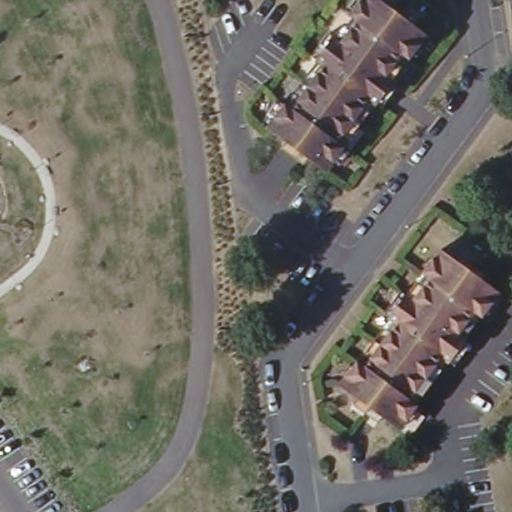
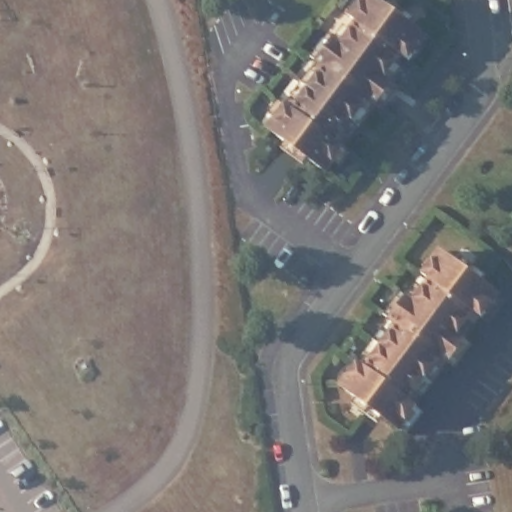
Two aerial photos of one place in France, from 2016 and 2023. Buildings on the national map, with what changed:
unchanged [(403,60),(396,55),(380,76),(394,85),(376,110),(363,99),(330,143),(338,147),(321,171),(262,128),(280,105),(286,110),(319,65),(312,61),(304,56),(322,32),(329,37),(335,43),(350,20),(343,16),(355,0),(371,0),(421,35),(403,60)]
unchanged [(479,322),(465,312),(450,334),(464,343),(445,366),(433,356),(399,400),(414,410),(395,433),(330,384),(348,361),(355,367),(387,322),(381,318),(373,313),(393,290),(399,295),(405,300),(422,278),(413,273),(431,250),(497,300),(479,322)]

